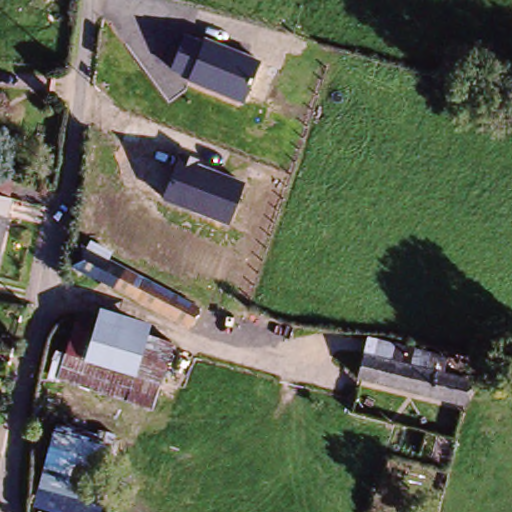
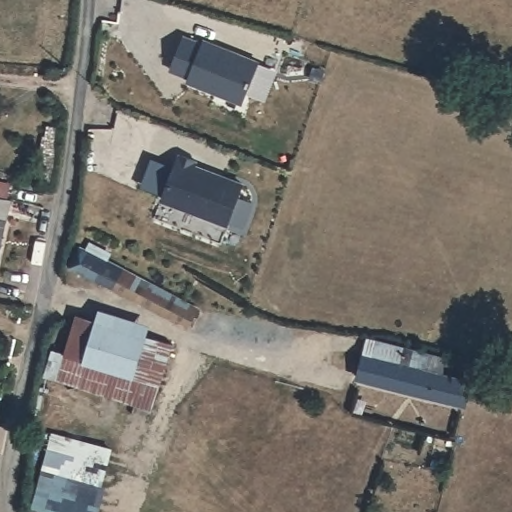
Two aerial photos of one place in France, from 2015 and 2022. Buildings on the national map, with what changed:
unchanged [(244,100),(172,70),(188,30),(261,60),(244,100)]
unchanged [(228,224),(164,199),(180,158),(244,182),(228,224)]
unchanged [(11,205),(0,203),(0,190),(12,192),(11,205)]
unchanged [(4,232),(0,250),(0,211),(9,212),(4,232)]
unchanged [(201,311),(191,330),(80,267),(90,250),(201,311)]
unchanged [(98,322),(103,309),(151,328),(150,337),(176,348),(155,410),(101,396),(57,380),(65,357),(77,314),(98,322)]
unchanged [(465,412),(362,382),(370,355),(403,364),(408,352),(448,363),(444,376),(473,385),(465,412)]
unchanged [(48,512),(32,508),(56,423),(117,440),(100,512),(48,512)]

